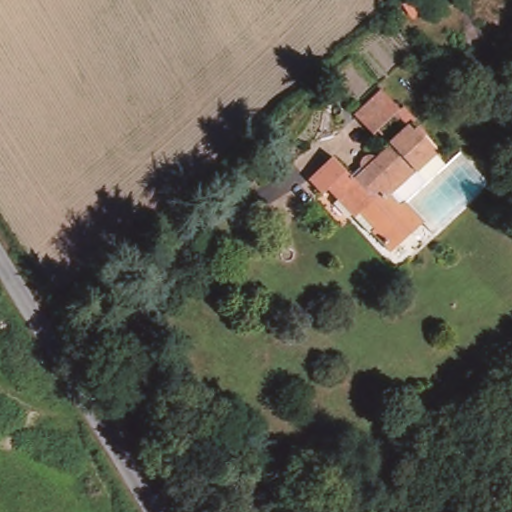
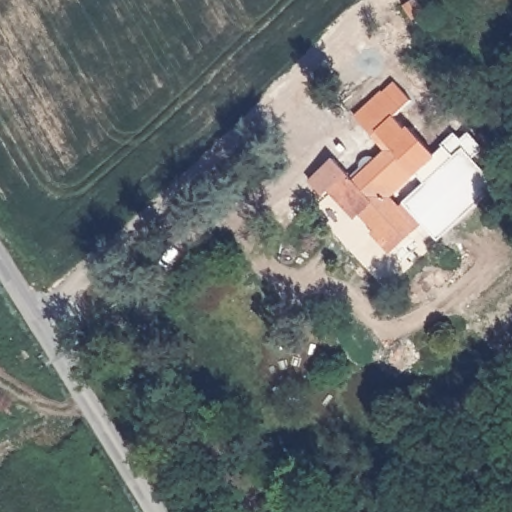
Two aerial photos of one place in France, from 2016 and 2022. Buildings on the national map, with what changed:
unchanged [(416,129),(419,133),(424,129),(456,164),(430,189),(416,174),(386,202),(399,217),(409,209),(431,233),(399,263),(376,241),(379,236),(366,222),(361,225),(338,202),(334,197),(351,179),(356,184),(359,187),(369,177),(366,173),(364,169),(366,164),(369,161),(374,160),(378,161),(383,165),(398,151),(384,136),(382,139),(366,121),(391,98),(406,116),(400,121),(412,134),(416,129)]
unchanged [(356,174),(358,172),(362,177),(356,184),(351,179),(334,197),(309,169),(332,147),(356,174)]

